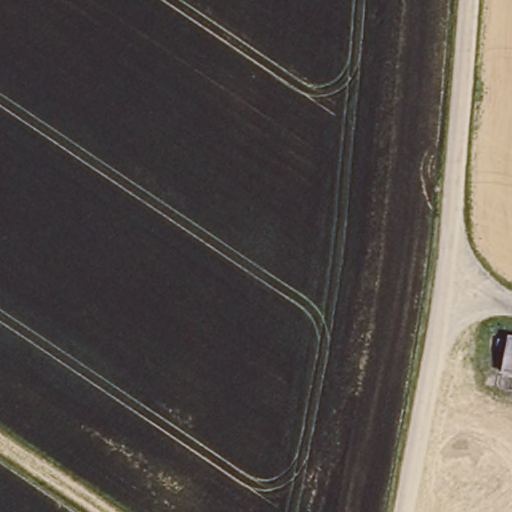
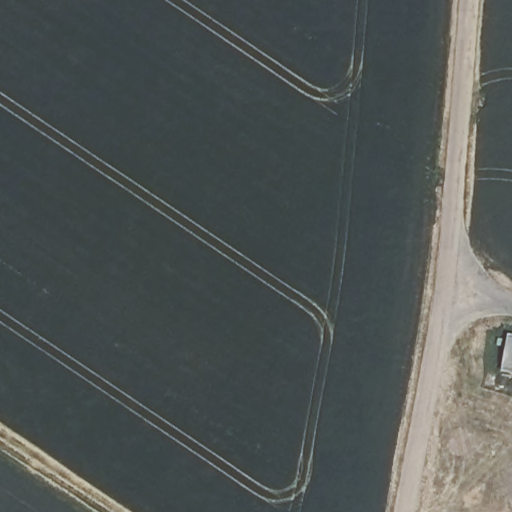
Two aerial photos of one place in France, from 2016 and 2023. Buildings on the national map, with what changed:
unchanged [(507,333),(512,335),(512,371),(496,366),(507,333)]

